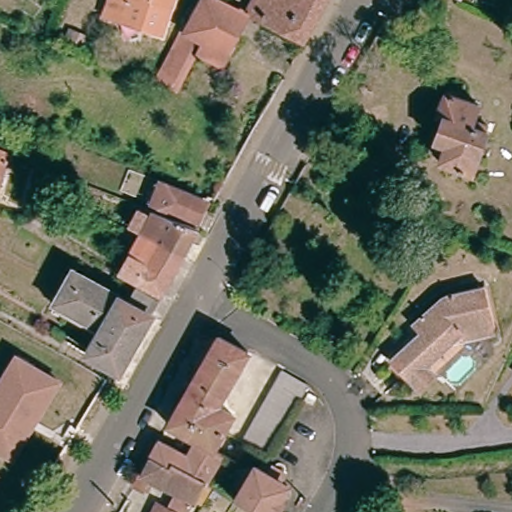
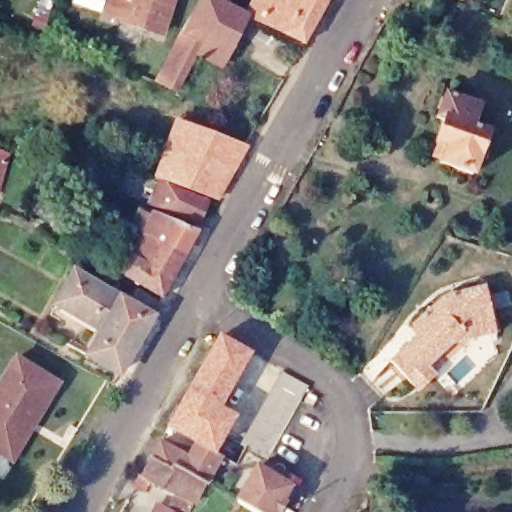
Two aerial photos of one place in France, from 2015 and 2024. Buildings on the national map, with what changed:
unchanged [(107,14),(112,0),(173,0),(161,34),(107,14)]
unchanged [(255,16),(230,61),(184,35),(203,0),(230,0),(251,11),(257,0),(332,0),(309,44),(255,16)]
unchanged [(454,0),(463,0),(462,3),(454,0)]
unchanged [(230,61),(225,70),(202,59),(184,90),(158,81),(184,35),(230,61)]
unchanged [(486,104),(479,125),(497,131),(483,173),(450,161),(456,144),(445,140),(453,119),(447,116),(455,93),(486,104)]
new [(176,118),(249,146),(219,200),(215,199),(160,179),(155,177),(176,118)]
unchanged [(12,156),(2,192),(0,192),(0,151),(12,156)]
unchanged [(215,199),(202,226),(153,208),(154,205),(135,197),(145,174),(215,199)]
unchanged [(133,259),(144,237),(146,235),(134,228),(144,212),(153,217),(155,214),(202,234),(188,258),(166,297),(140,284),(123,276),(133,259)]
unchanged [(122,375),(92,357),(109,327),(78,309),(76,312),(62,303),(79,275),(113,294),(132,305),(140,290),(163,303),(155,317),(145,335),(135,351),(122,375)]
unchanged [(418,385),(394,360),(423,332),(416,324),(428,313),(445,297),(486,287),(497,327),(498,333),(446,346),(430,364),(434,368),(440,374),(423,390),(418,385)]
unchanged [(253,356),(224,410),(238,417),(219,452),(226,458),(223,466),(218,464),(210,460),(197,452),(196,451),(200,444),(173,430),(224,340),(253,356)]
unchanged [(12,357),(53,382),(7,457),(0,453),(0,376),(12,357)]
unchanged [(317,383),(276,455),(250,441),(291,367),(317,383)]
unchanged [(197,452),(210,460),(218,464),(223,466),(207,492),(155,461),(165,443),(192,458),(196,451),(197,452)]
unchanged [(155,461),(207,492),(195,512),(157,512),(161,505),(171,510),(178,498),(155,486),(149,496),(139,491),(155,461)]
unchanged [(262,466),(271,472),(276,463),(291,473),(285,482),(289,485),(282,493),(290,497),(282,512),(257,512),(240,502),(259,472),(262,466)]

